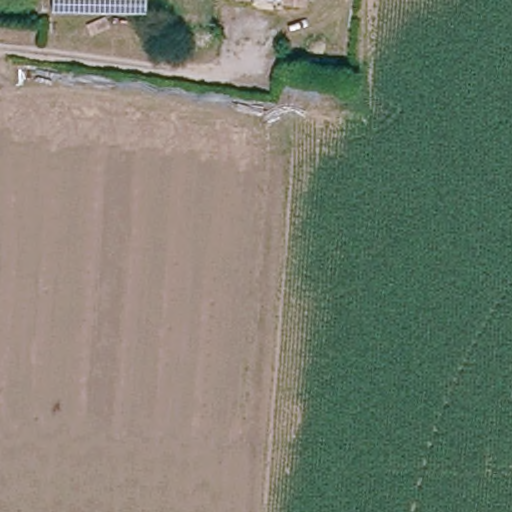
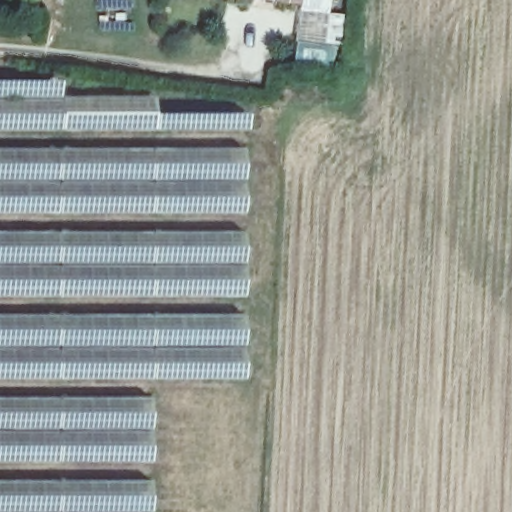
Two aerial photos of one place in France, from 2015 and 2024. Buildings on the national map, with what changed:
unchanged [(301,3),(283,1),(283,0),(301,0),(301,3)]
demolished [(95,119),(72,419),(0,414),(0,114),(95,119)]
demolished [(139,124),(257,131),(236,430),(115,420),(139,124)]
demolished [(237,459),(233,512),(0,512),(0,443),(237,459)]

